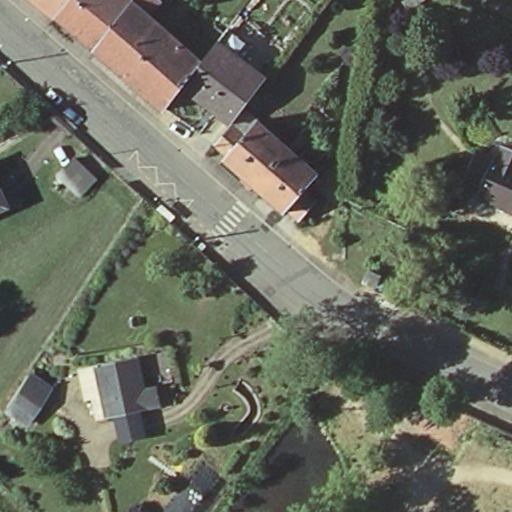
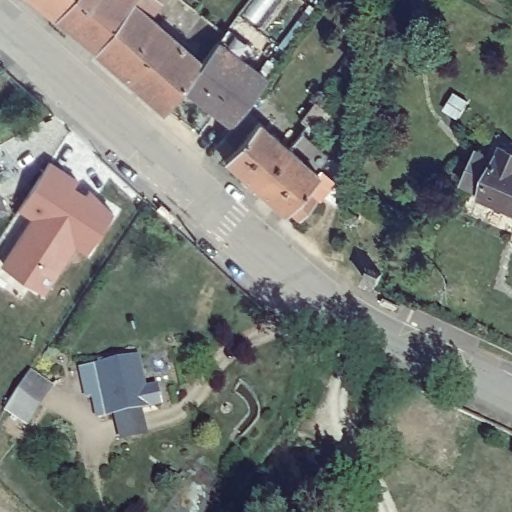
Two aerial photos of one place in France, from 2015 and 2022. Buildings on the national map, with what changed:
unchanged [(34,0),(63,0),(51,14),(34,0)]
unchanged [(160,107),(90,47),(51,14),(63,0),(161,0),(143,14),(195,60),(196,61),(179,84),(160,107)]
unchanged [(195,60),(226,24),(245,41),(237,52),(263,74),(225,121),(179,84),(196,61),(195,60)]
unchanged [(222,154),(210,143),(229,123),(240,133),(255,117),(285,145),(251,182),(221,154),(222,154)]
unchanged [(497,144),(512,152),(512,211),(475,193),(497,144)]
unchanged [(295,220),(283,209),(281,209),(251,182),(285,145),(315,174),(301,189),(313,200),(295,220)]
demolished [(89,174),(72,194),(50,174),(67,155),(89,174)]
new [(80,178),(74,185),(86,193),(90,188),(115,211),(88,254),(76,247),(45,294),(0,265),(31,218),(18,209),(50,160),(80,178)]
unchanged [(352,225),(378,238),(368,258),(343,245),(352,225)]
unchanged [(92,404),(91,398),(85,399),(76,368),(133,354),(142,386),(153,383),(158,402),(105,415),(104,412),(95,414),(92,404)]
unchanged [(51,391),(29,425),(9,412),(31,378),(51,391)]

